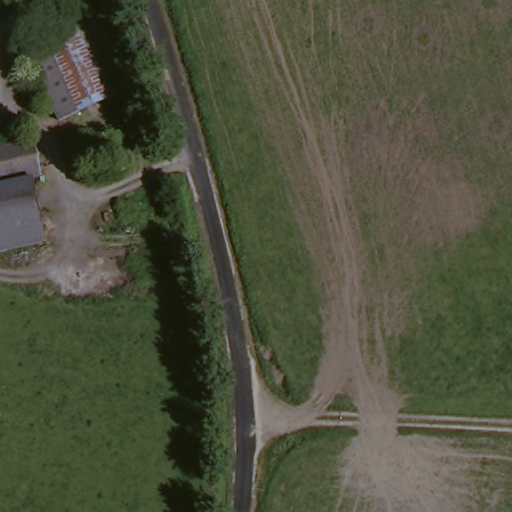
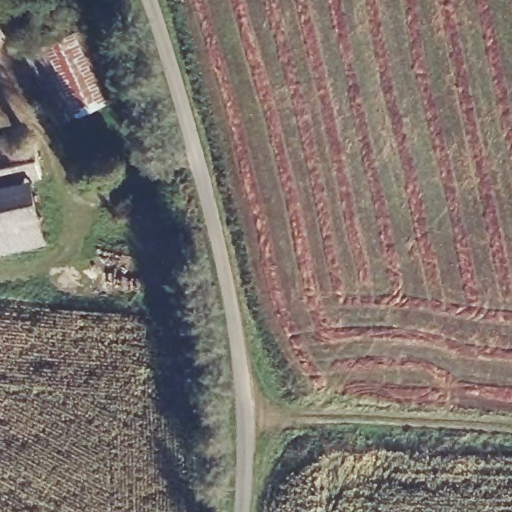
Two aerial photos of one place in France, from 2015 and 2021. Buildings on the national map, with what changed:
unchanged [(101,21),(131,87),(80,112),(52,44),(101,21)]
unchanged [(80,112),(61,121),(31,53),(52,44),(80,112)]
unchanged [(38,143),(44,176),(0,184),(0,150),(38,143)]
unchanged [(59,243),(0,254),(0,191),(46,182),(59,243)]

